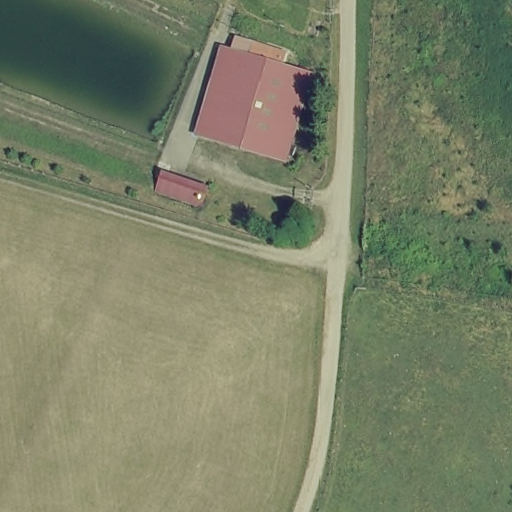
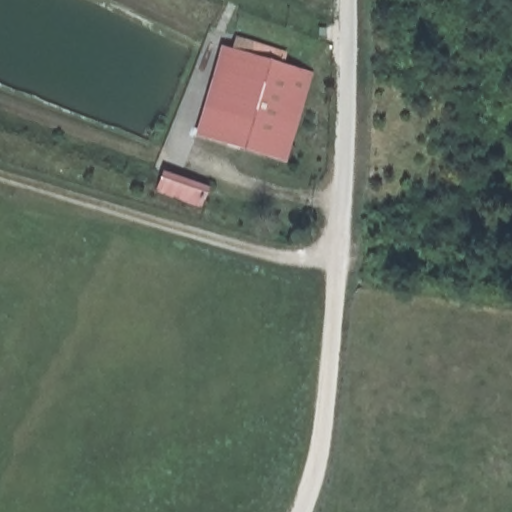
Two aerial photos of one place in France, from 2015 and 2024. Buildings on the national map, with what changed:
unchanged [(217,46),(287,67),(281,89),(297,94),(278,159),(191,133),(217,46)]

